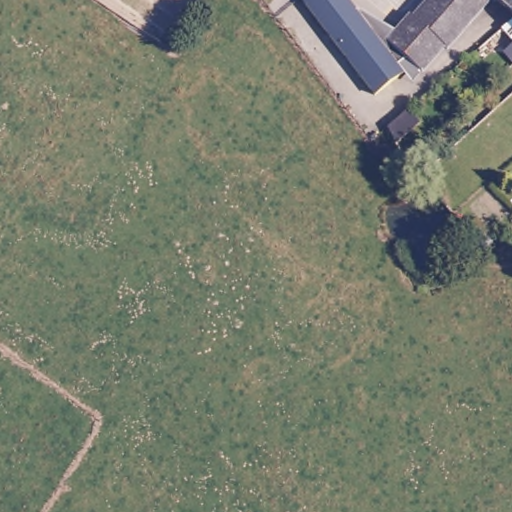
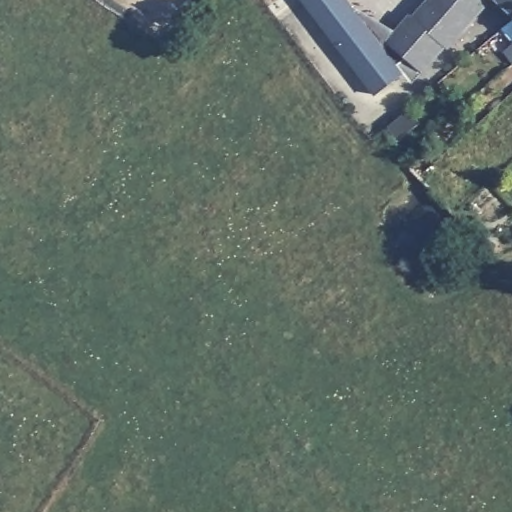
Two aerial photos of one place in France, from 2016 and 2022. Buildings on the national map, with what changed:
unchanged [(400,35),(411,23),(436,51),(411,82),(405,73),(376,95),(303,0),(347,0),(356,11),(400,35)]
unchanged [(411,23),(417,16),(418,18),(432,0),(475,0),(436,51),(411,23)]
unchanged [(508,0),(512,0),(512,3),(508,0)]
unchanged [(424,125),(400,146),(383,131),(410,108),(424,125)]

